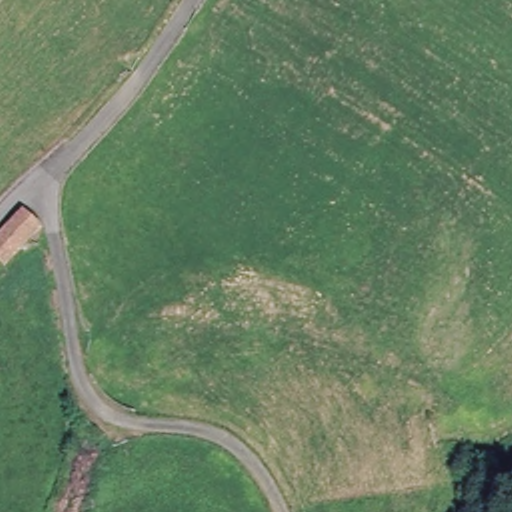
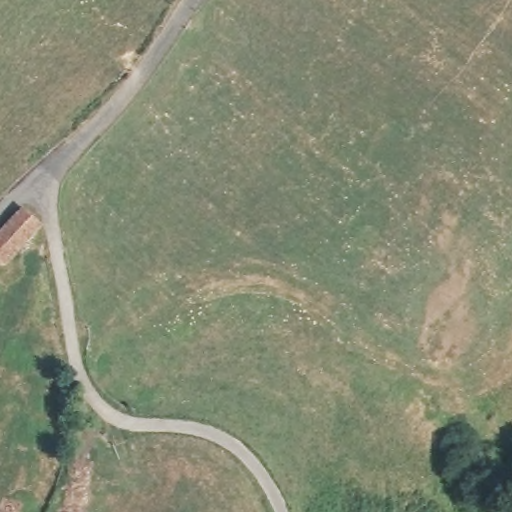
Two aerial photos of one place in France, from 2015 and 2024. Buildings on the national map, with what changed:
unchanged [(25,215),(43,232),(6,270),(0,265),(0,241),(25,215)]

